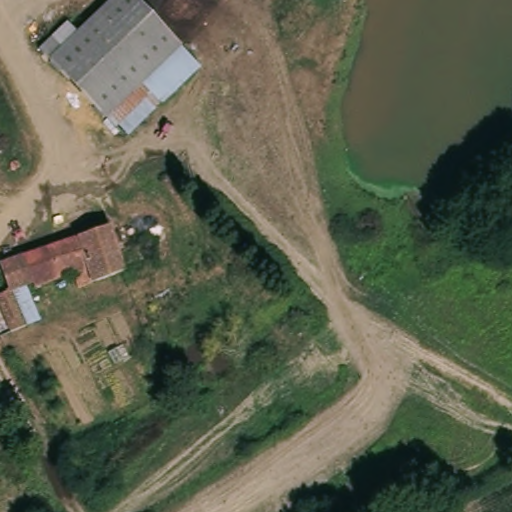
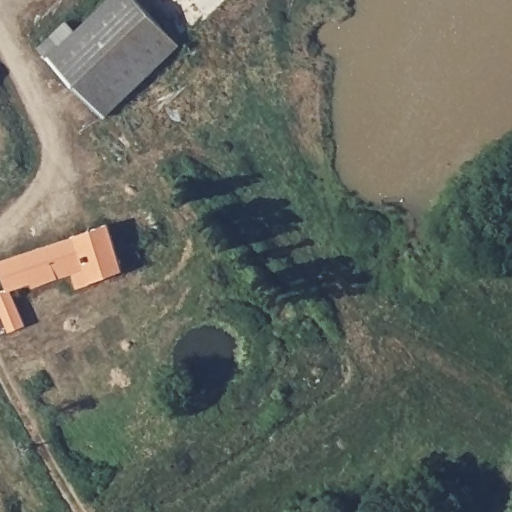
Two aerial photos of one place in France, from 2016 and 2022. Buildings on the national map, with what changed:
unchanged [(109,0),(133,0),(177,45),(102,118),(45,62),(45,61),(109,0)]
unchanged [(196,65),(121,136),(102,118),(177,45),(196,65)]
unchanged [(122,252),(136,247),(145,263),(101,279),(106,292),(81,301),(69,276),(33,289),(33,286),(14,294),(28,324),(11,330),(0,306),(0,293),(9,290),(1,265),(114,223),(115,226),(122,252)]

